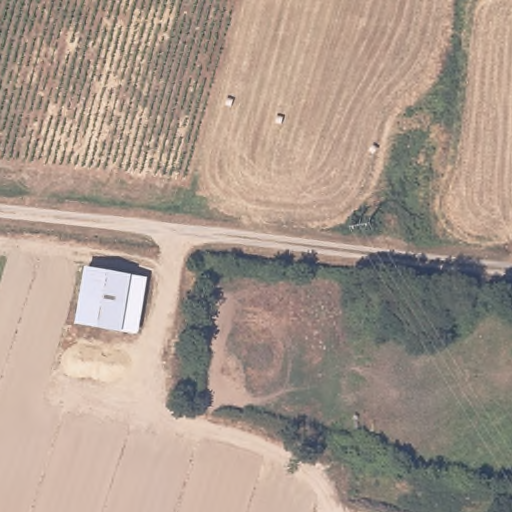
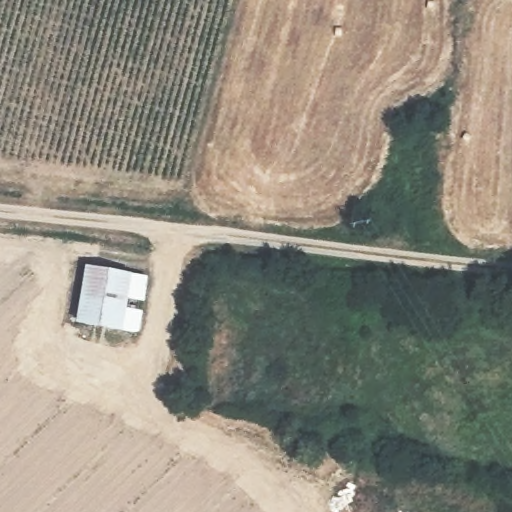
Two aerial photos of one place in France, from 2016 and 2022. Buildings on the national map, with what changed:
unchanged [(137,270),(131,326),(87,320),(94,263),(137,270)]

